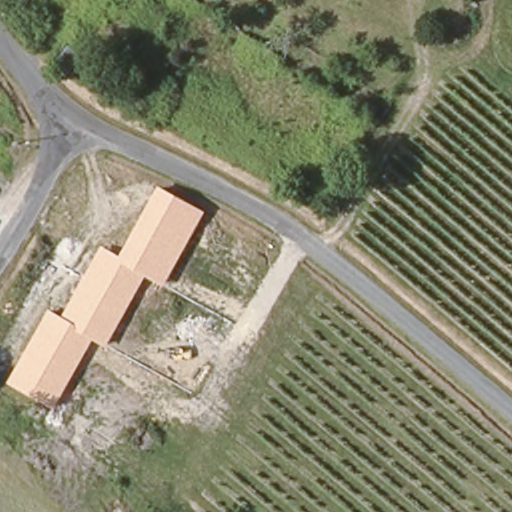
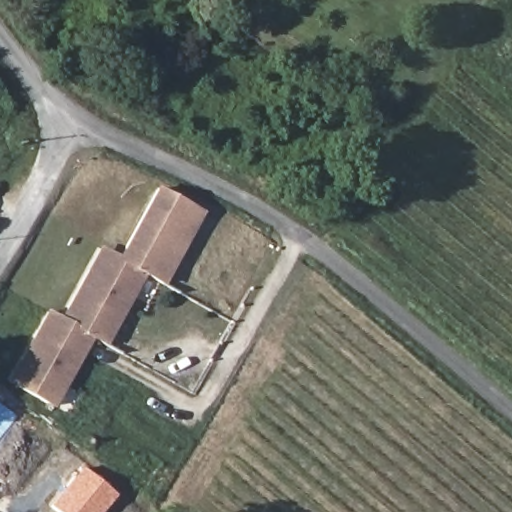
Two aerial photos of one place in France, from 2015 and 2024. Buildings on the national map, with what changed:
unchanged [(144,276),(105,347),(90,340),(52,410),(5,382),(46,310),(59,317),(99,246),(117,256),(156,185),(203,211),(161,286),(144,276)]
new [(102,512),(57,512),(49,506),(80,467),(115,495),(102,512)]

